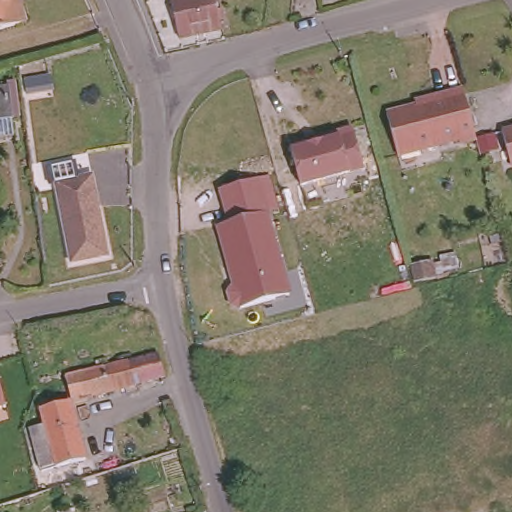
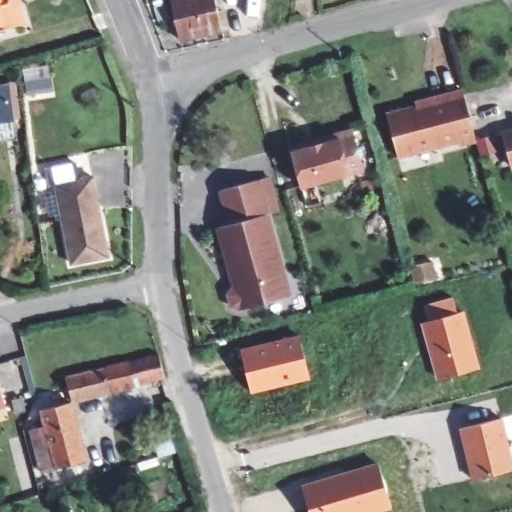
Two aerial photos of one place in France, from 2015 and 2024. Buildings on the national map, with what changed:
unchanged [(0,29),(0,0),(15,0),(22,23),(0,29)]
unchanged [(174,0),(217,0),(223,29),(182,38),(174,0)]
unchanged [(28,99),(25,84),(50,80),(52,95),(28,99)]
unchanged [(10,86),(14,136),(0,137),(0,87),(10,86)]
unchanged [(460,143),(401,159),(390,118),(420,109),(418,102),(465,90),(468,96),(480,141),(462,146),(460,143)]
unchanged [(351,133),(362,174),(302,188),(291,149),(351,133)]
unchanged [(512,133),(512,147),(508,134),(512,133)]
unchanged [(110,256),(76,263),(60,183),(52,185),(48,168),(82,161),(86,178),(94,176),(110,256)]
unchanged [(281,215),(270,217),(290,293),(237,308),(217,229),(227,225),(217,191),(269,177),(281,215)]
unchanged [(416,287),(412,270),(433,265),(437,282),(416,287)]
new [(420,323),(428,321),(424,305),(455,296),(459,313),(465,311),(480,368),(437,381),(420,323)]
new [(310,380),(251,395),(240,349),(300,334),(310,380)]
unchanged [(46,425),(43,417),(42,412),(37,392),(66,384),(64,375),(97,366),(95,359),(106,356),(108,364),(159,351),(165,374),(70,398),(85,455),(57,464),(41,469),(37,457),(33,443),(30,429),(46,425)]
unchanged [(7,410),(0,411),(0,383),(7,410)]
new [(503,418),(512,455),(512,470),(473,480),(460,429),(503,418)]
new [(393,510),(385,512),(308,512),(300,484),(378,462),(393,510)]
unchanged [(54,480),(52,472),(58,470),(60,478),(54,480)]

